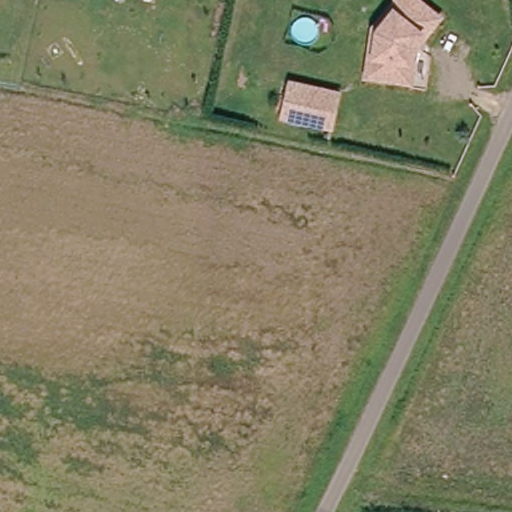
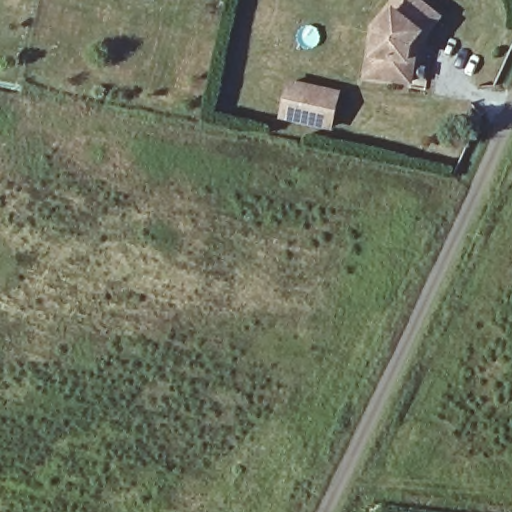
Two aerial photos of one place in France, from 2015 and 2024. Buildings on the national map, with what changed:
unchanged [(417,81),(373,75),(379,34),(379,30),(388,19),(403,0),(425,0),(445,16),(431,34),(422,45),(417,81)]
unchanged [(290,82),(339,93),(332,127),(283,117),(290,82)]

